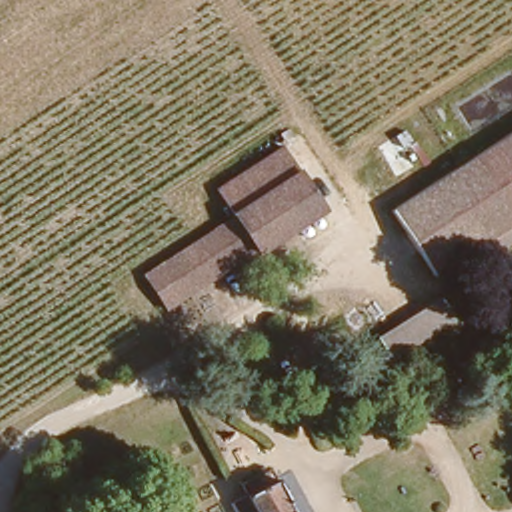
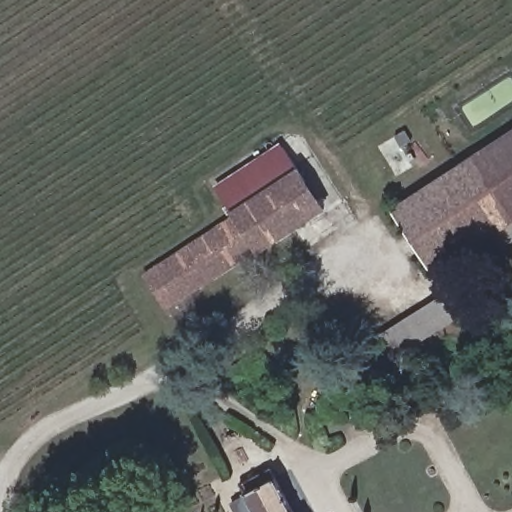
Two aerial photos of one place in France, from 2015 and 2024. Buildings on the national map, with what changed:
unchanged [(384,200),(512,127),(512,219),(426,268),(384,200)]
unchanged [(330,210),(258,250),(257,247),(170,297),(149,262),(234,214),(217,185),(290,142),(330,210)]
unchanged [(512,220),(512,235),(434,281),(426,268),(512,219),(512,220)]
unchanged [(442,320),(376,357),(363,334),(428,296),(442,320)]
unchanged [(295,512),(237,512),(233,505),(248,496),(241,485),(268,469),(295,512)]

